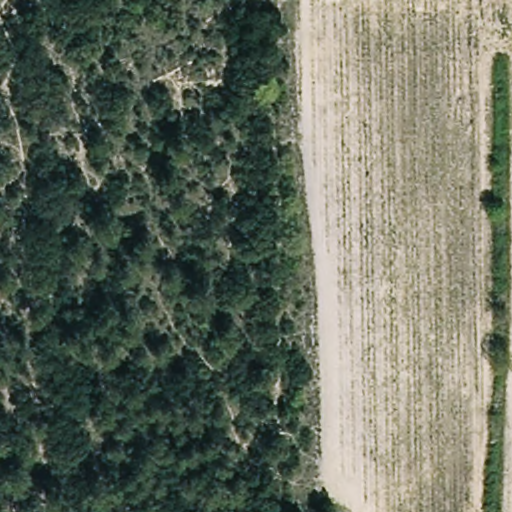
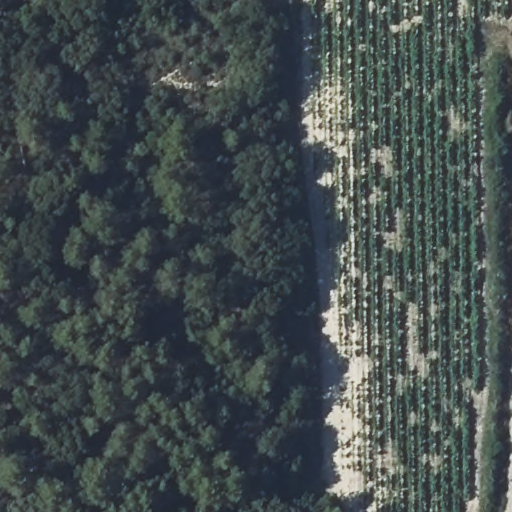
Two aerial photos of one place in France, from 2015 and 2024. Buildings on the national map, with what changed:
[]

